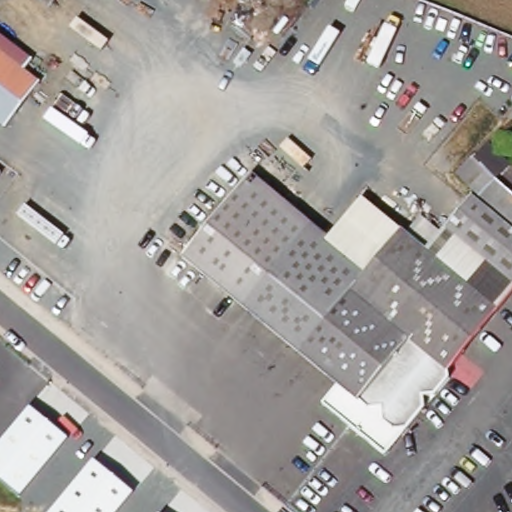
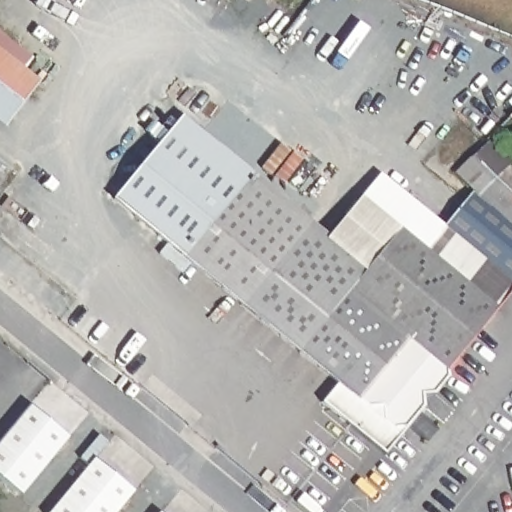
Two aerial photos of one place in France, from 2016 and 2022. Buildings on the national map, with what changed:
unchanged [(37,58),(26,72),(43,86),(8,131),(0,125),(0,32),(37,58)]
new [(113,201),(182,116),(249,174),(181,259),(113,201)]
unchanged [(488,141),(511,165),(497,178),(512,191),(512,224),(455,172),(473,156),(488,141)]
unchanged [(2,174),(0,176),(0,172),(2,174)]
unchanged [(240,307),(181,259),(249,174),(308,223),(315,229),(263,293),(247,312),(240,307)]
unchanged [(443,227),(512,282),(512,292),(508,297),(434,237),(443,227)]
unchanged [(366,271),(400,230),(424,250),(434,237),(508,297),(449,370),(449,383),(436,400),(427,403),(424,415),(419,420),(263,293),(315,229),(366,271)]
unchanged [(263,293),(419,420),(408,434),(398,435),(387,425),(383,416),(374,412),(371,412),(247,312),(263,293)]
unchanged [(30,407),(69,440),(22,497),(0,480),(0,444),(30,407)]
unchanged [(134,494),(119,512),(51,512),(94,461),(134,494)]

